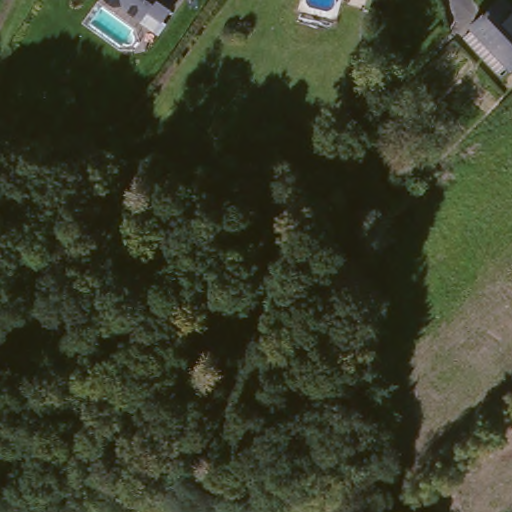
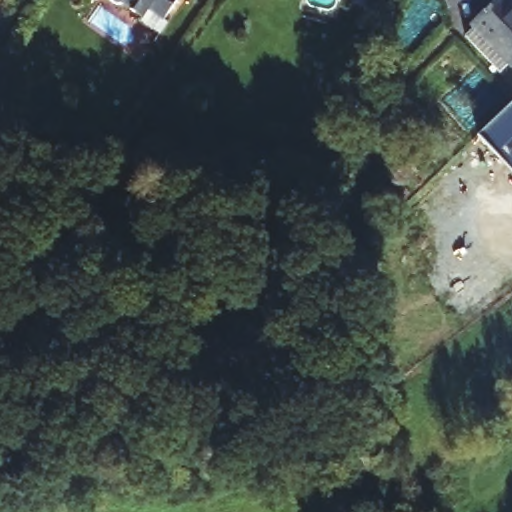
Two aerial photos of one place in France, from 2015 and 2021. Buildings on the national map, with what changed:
unchanged [(120,6),(111,0),(130,0),(127,5),(120,6)]
unchanged [(147,0),(160,0),(156,6),(147,0)]
unchanged [(165,0),(181,0),(176,7),(165,0)]
unchanged [(509,65),(500,73),(465,37),(474,27),(472,25),(499,0),(508,0),(512,4),(512,67),(509,65)]
new [(512,102),(512,165),(481,132),(512,102)]
unchanged [(403,186),(394,177),(409,163),(418,172),(403,186)]
unchanged [(371,203),(365,179),(377,176),(383,200),(371,203)]

